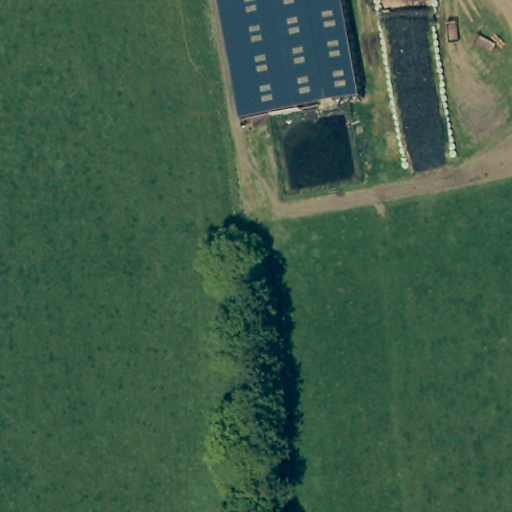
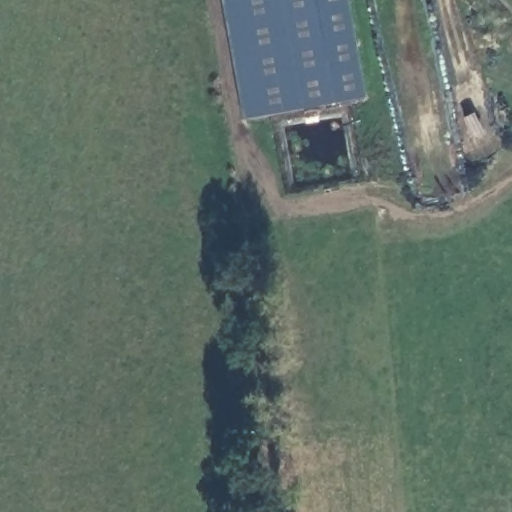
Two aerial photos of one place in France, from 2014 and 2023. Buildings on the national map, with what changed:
unchanged [(244,121),(221,0),(346,0),(365,99),(244,121)]

